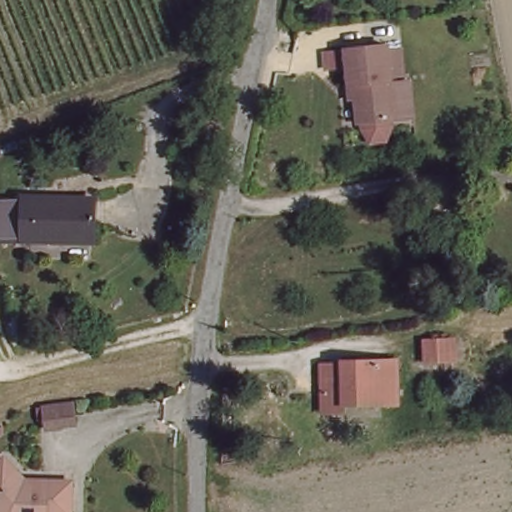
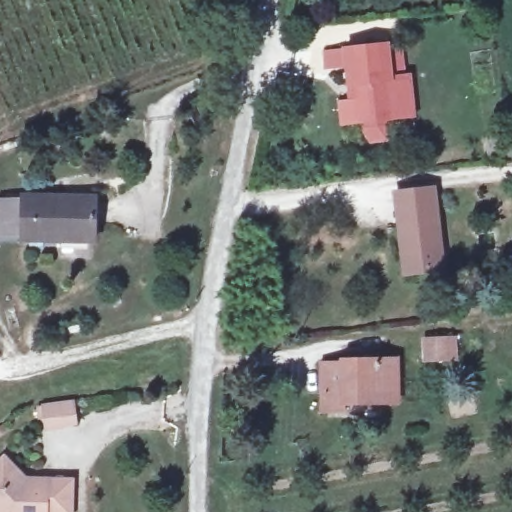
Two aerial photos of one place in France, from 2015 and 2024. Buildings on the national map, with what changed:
unchanged [(411,110),(390,112),(354,117),(353,95),(344,95),(340,45),(382,39),(382,42),(395,41),(398,70),(385,72),(386,78),(408,76),(411,110)]
new [(434,190),(437,220),(403,224),(399,194),(434,190)]
unchanged [(102,248),(27,242),(7,241),(11,200),(31,200),(105,205),(102,248)]
new [(437,220),(444,269),(409,273),(403,224),(437,220)]
unchanged [(454,332),(454,355),(427,355),(427,332),(454,332)]
unchanged [(392,353),(392,395),(340,397),(340,406),(321,406),(321,392),(316,392),(316,360),(336,360),(338,355),(392,353)]
unchanged [(70,399),(74,416),(47,421),(43,404),(70,399)]
unchanged [(3,455),(23,474),(70,476),(70,510),(49,509),(48,512),(0,512),(0,459),(3,455)]

